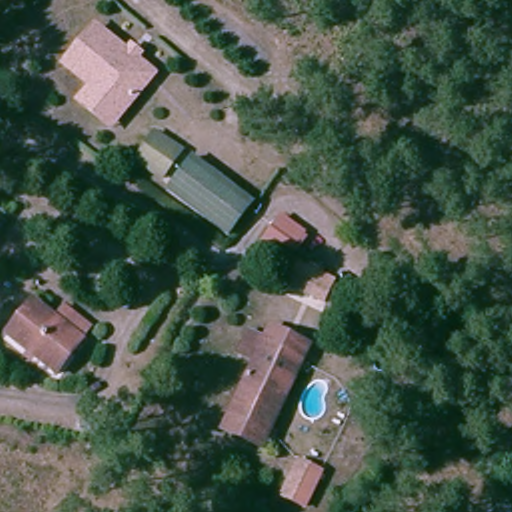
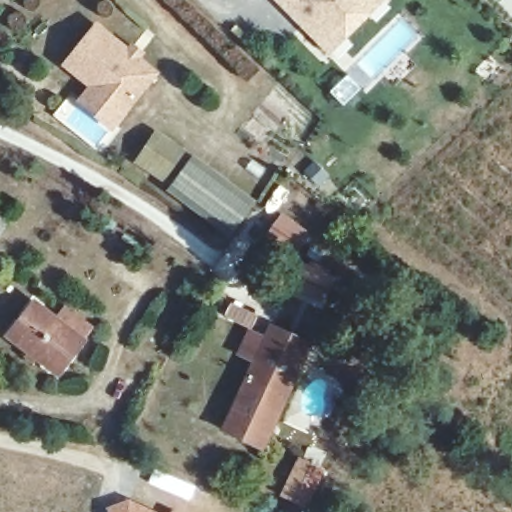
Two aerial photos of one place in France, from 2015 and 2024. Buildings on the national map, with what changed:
new [(272,0),(386,0),(330,57),(272,0)]
unchanged [(99,17),(162,70),(112,131),(75,99),(85,85),(62,65),(99,17)]
unchanged [(181,155),(161,182),(135,165),(152,136),(181,155)]
unchanged [(232,237),(165,194),(189,151),(259,194),(232,237)]
demolished [(301,234),(300,236),(286,258),(277,252),(244,231),(257,210),(260,207),(301,234)]
unchanged [(307,271),(310,266),(324,275),(320,280),(331,287),(319,306),(285,284),(297,265),(307,271)]
unchanged [(85,343),(61,376),(11,338),(37,303),(85,343)]
unchanged [(229,430),(234,418),(261,357),(249,351),(258,331),(312,357),(274,436),(268,447),(229,430)]
unchanged [(295,473),(317,483),(305,512),(275,512),(295,473)]
new [(128,500),(155,512),(108,512),(106,507),(128,500)]
new [(171,510),(176,512),(170,512),(171,510)]

